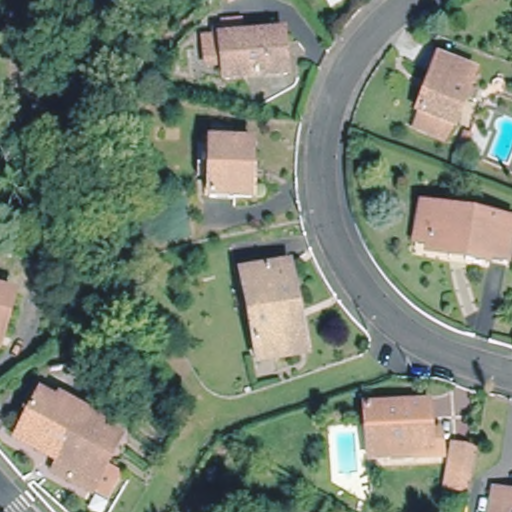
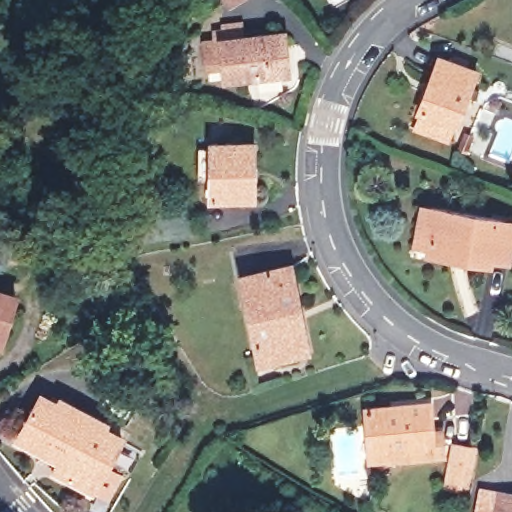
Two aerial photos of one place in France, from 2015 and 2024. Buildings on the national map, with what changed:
unchanged [(227,0),(235,0),(230,3),(227,0)]
unchanged [(286,74),(225,80),(224,66),(206,68),(204,41),(221,39),(282,33),(286,74)]
unchanged [(413,128),(420,111),(441,58),(451,62),(453,55),(467,61),(465,67),(476,72),(455,125),(449,142),(413,128)]
unchanged [(236,143),(253,143),(253,151),(252,199),(210,198),(210,178),(199,178),(199,147),(210,147),(210,143),(236,143)]
unchanged [(503,268),(485,265),(485,268),(461,264),(462,260),(422,254),(423,251),(411,249),(418,211),(430,213),(510,228),(503,268)]
unchanged [(260,362),(258,356),(242,276),(290,266),(300,313),(288,315),(290,324),(295,323),(300,348),(301,354),(260,362)]
unchanged [(0,346),(0,292),(15,296),(3,337),(0,346)]
unchanged [(87,493),(61,479),(49,472),(50,469),(55,458),(35,447),(13,435),(35,394),(52,403),(55,398),(101,422),(98,428),(111,435),(116,438),(102,465),(101,467),(115,474),(102,499),(88,491),(87,493)]
unchanged [(364,465),(363,451),(360,412),(424,408),(426,438),(437,437),(438,461),(415,462),(415,454),(381,456),(382,464),(364,465)]
unchanged [(465,495),(442,491),(450,450),(472,454),(465,495)]
unchanged [(495,490),(512,493),(512,512),(491,512),(495,490)]

